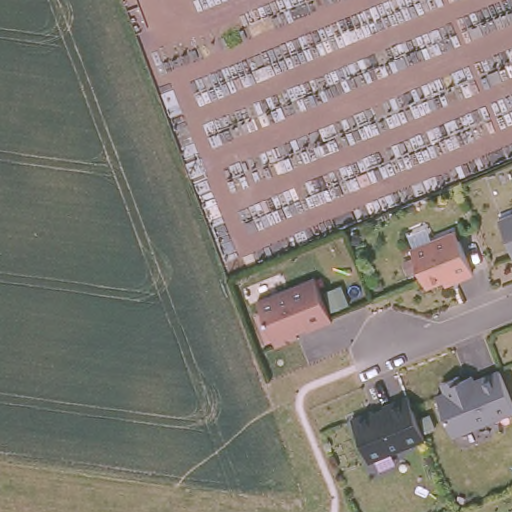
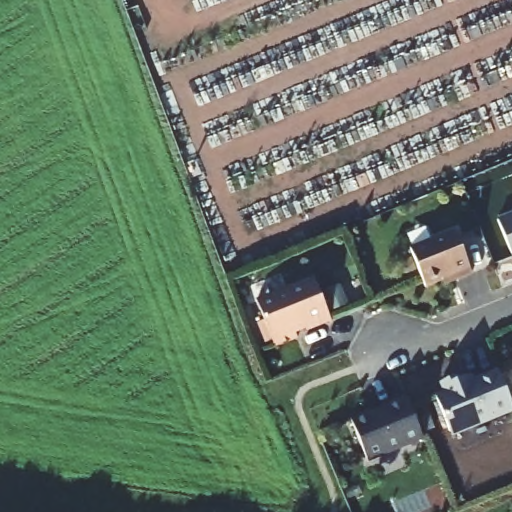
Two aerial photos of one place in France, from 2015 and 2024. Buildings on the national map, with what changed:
unchanged [(512,216),(512,256),(498,222),(512,216)]
unchanged [(456,282),(454,277),(425,288),(411,252),(454,234),(471,275),(456,282)]
unchanged [(329,320),(294,333),(296,338),(274,347),(256,302),(314,279),(329,320)]
unchanged [(449,432),(436,398),(444,394),(441,385),(457,377),(461,387),(498,372),(512,407),(512,412),(457,435),(449,432)]
unchanged [(368,462),(351,421),(371,412),(373,415),(383,411),(381,408),(406,397),(424,440),(368,462)]

